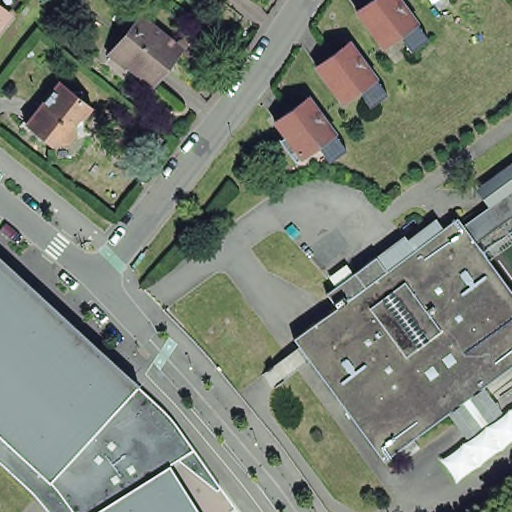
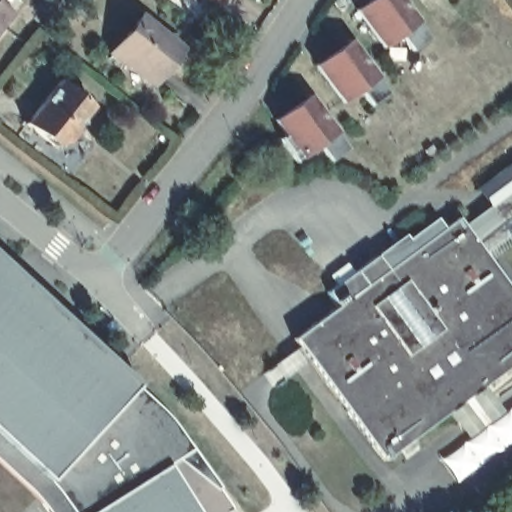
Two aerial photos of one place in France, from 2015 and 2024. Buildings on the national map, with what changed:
unchanged [(0,32),(0,0),(15,12),(0,32)]
unchanged [(209,5),(202,0),(213,0),(209,5)]
unchanged [(364,0),(399,0),(411,19),(425,40),(417,45),(407,52),(406,51),(390,61),(388,57),(355,6),(364,0)]
unchanged [(430,6),(425,0),(439,0),(430,6)]
unchanged [(180,50),(155,81),(116,50),(110,58),(107,57),(140,17),(180,50)]
unchanged [(345,36),(354,50),(373,81),(380,92),(362,103),(362,102),(355,106),(345,112),(310,57),(325,48),(345,36)]
unchanged [(73,91),(80,90),(81,98),(90,105),(81,116),(82,123),(75,125),(75,132),(67,142),(51,144),(25,123),(60,81),(73,91)]
unchanged [(283,133),(271,114),(285,105),(305,92),(315,107),(338,144),(341,148),(329,156),(323,160),(315,146),(298,157),(291,161),(276,137),(283,133)]
unchanged [(486,270),(480,260),(462,233),(488,214),(475,197),(512,167),(512,249),(486,270)]
unchanged [(462,233),(480,260),(486,270),(512,309),(512,371),(472,397),(435,421),(371,464),(287,337),(331,309),(327,303),(321,294),(373,260),(403,240),(406,246),(434,227),(440,237),(457,226),(462,233)]
unchanged [(162,408),(177,422),(190,440),(224,489),(218,492),(178,463),(172,467),(200,512),(48,512),(35,494),(0,462),(0,256),(139,384),(162,408)]
unchanged [(490,424),(453,448),(435,421),(472,397),(490,424)]

